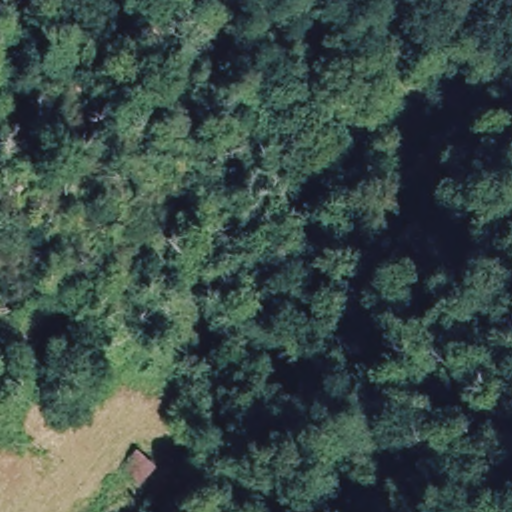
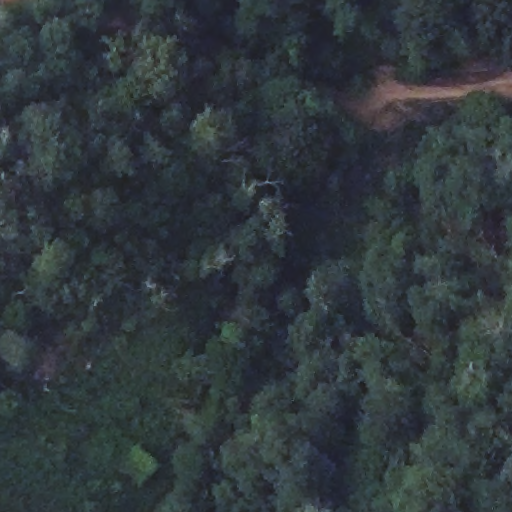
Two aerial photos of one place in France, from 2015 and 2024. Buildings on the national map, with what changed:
unchanged [(168,487),(147,512),(131,512),(121,503),(150,471),(168,487)]

